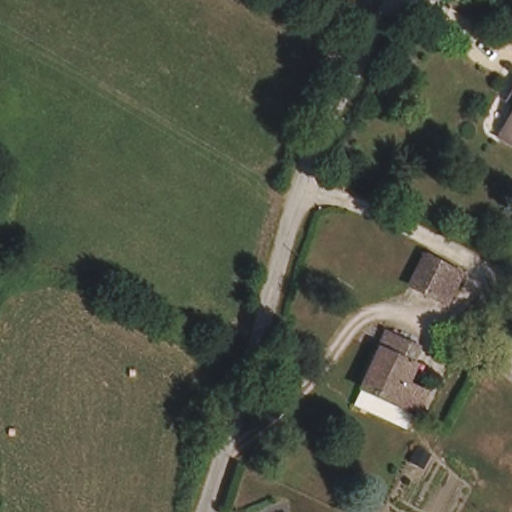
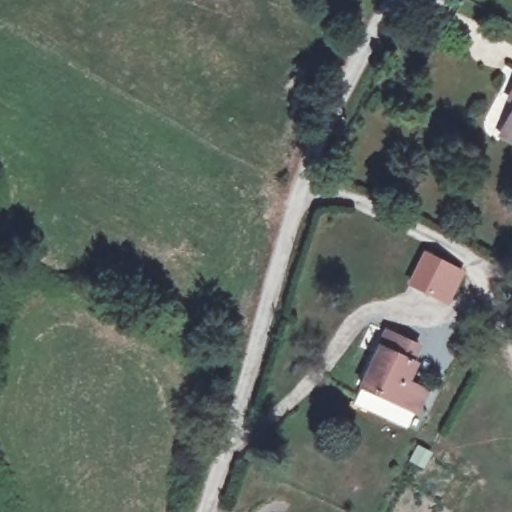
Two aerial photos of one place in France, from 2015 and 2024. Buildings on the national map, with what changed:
unchanged [(494,137),(510,107),(501,102),(507,90),(512,80),(512,148),(494,137)]
unchanged [(460,273),(446,300),(410,281),(424,255),(460,273)]
unchanged [(375,412),(345,400),(380,328),(410,342),(395,376),(418,387),(407,407),(405,406),(397,423),(375,412)]

